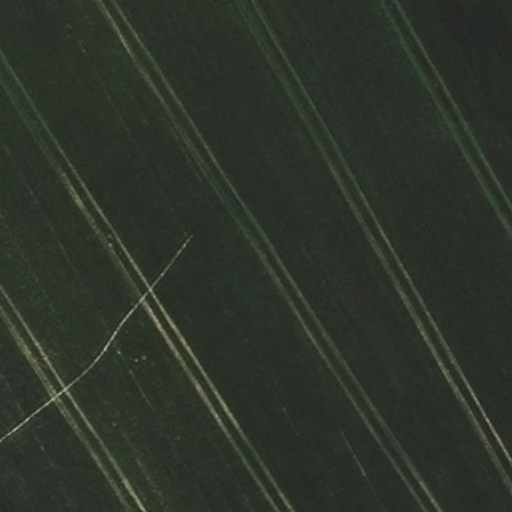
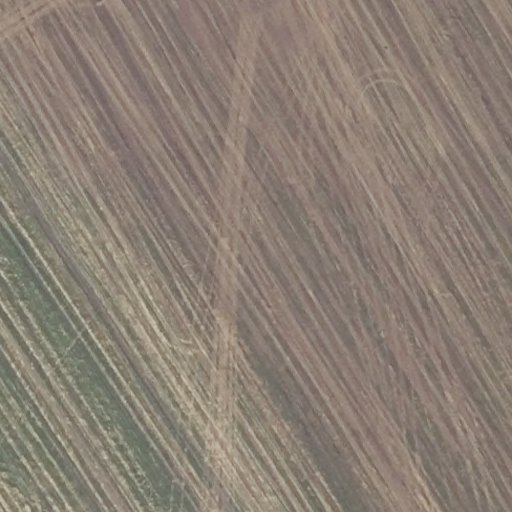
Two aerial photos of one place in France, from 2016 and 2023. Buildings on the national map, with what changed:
[]

